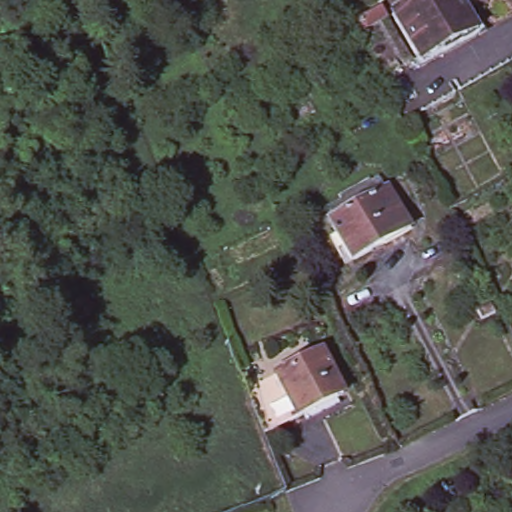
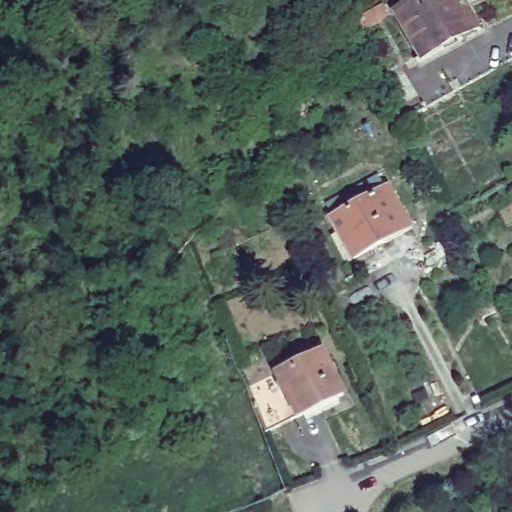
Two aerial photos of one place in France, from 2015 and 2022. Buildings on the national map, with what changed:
unchanged [(371,0),(377,0),(380,6),(358,17),(354,9),(371,0)]
unchanged [(412,0),(461,0),(478,31),(422,61),(394,10),(412,0)]
unchanged [(410,230),(386,243),(385,241),(353,258),(331,220),(324,206),(378,176),(385,189),(387,187),(410,230)]
unchanged [(322,351),(343,395),(296,417),(275,374),(322,351)]
unchanged [(275,374),(296,417),(264,433),(247,387),(275,374)]

